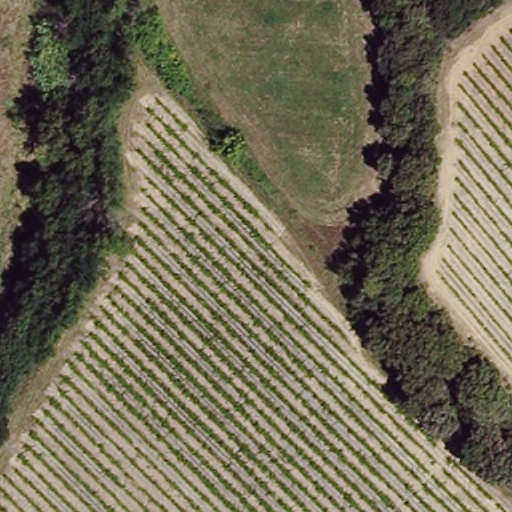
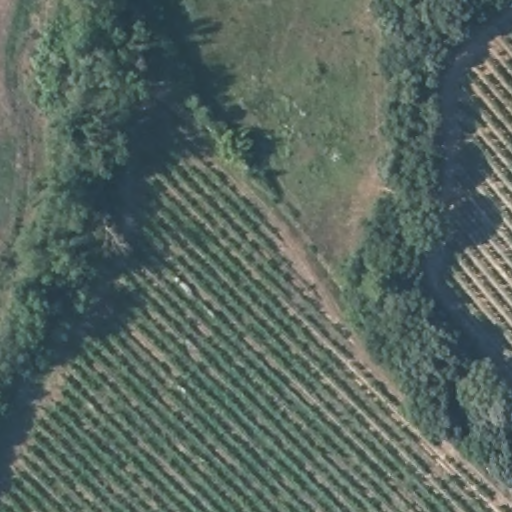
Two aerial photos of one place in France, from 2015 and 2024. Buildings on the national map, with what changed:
[]

